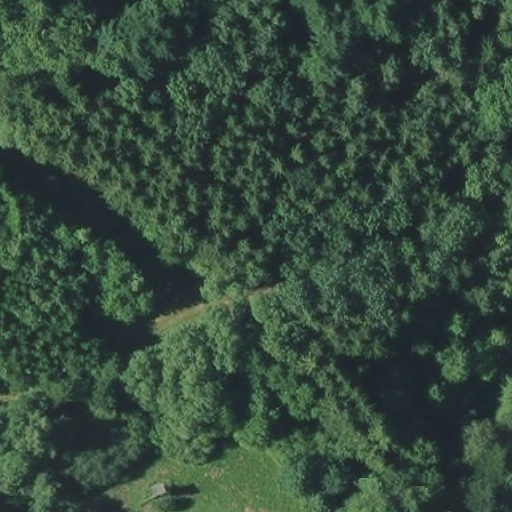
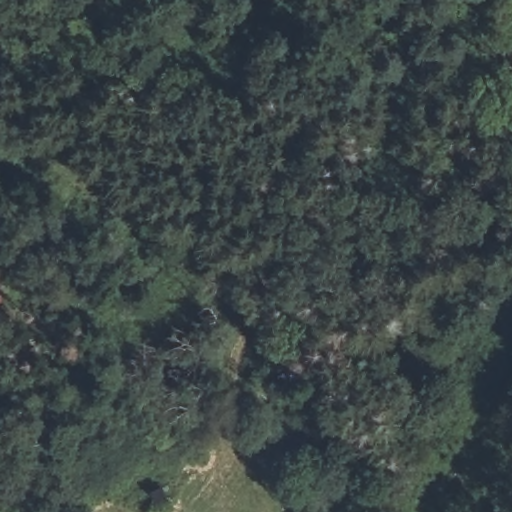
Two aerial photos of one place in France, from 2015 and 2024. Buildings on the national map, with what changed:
unchanged [(162,489),(171,512),(153,512),(149,496),(162,489)]

